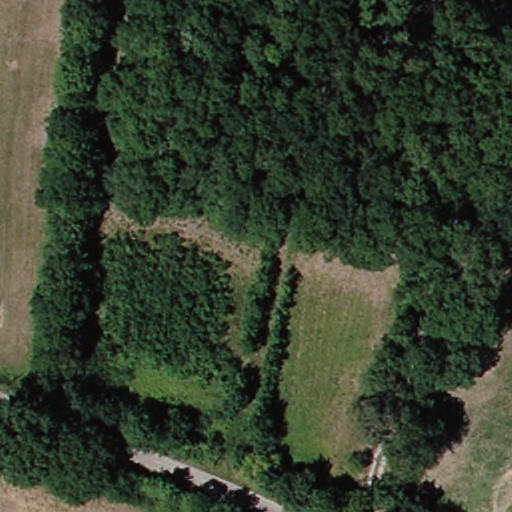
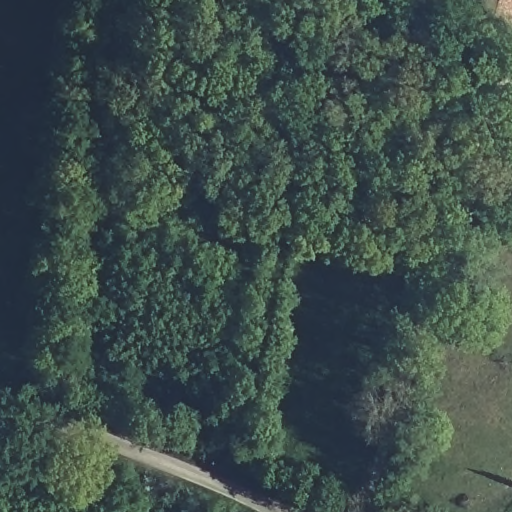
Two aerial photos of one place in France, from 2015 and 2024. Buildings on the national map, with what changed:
unchanged [(472,14),(476,0),(504,0),(499,20),(472,14)]

